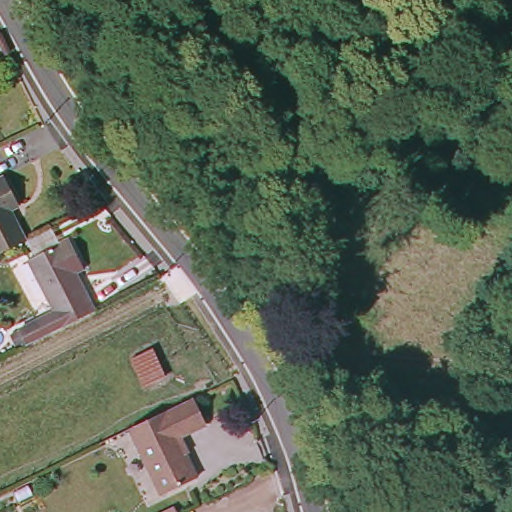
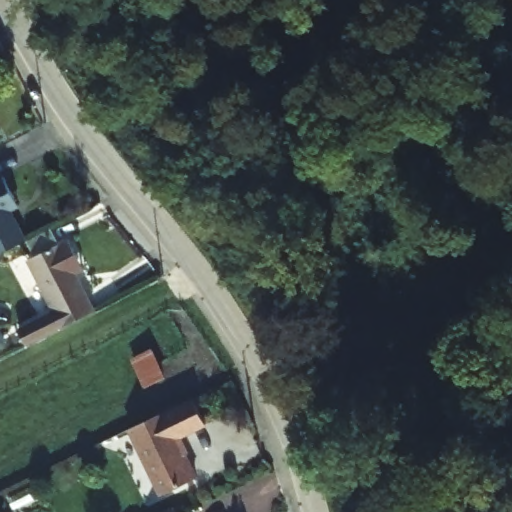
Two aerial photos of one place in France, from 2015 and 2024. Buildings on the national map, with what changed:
unchanged [(5,176),(17,199),(20,207),(11,212),(26,241),(3,252),(0,254),(0,178),(5,176)]
unchanged [(56,312),(30,260),(69,241),(79,260),(83,270),(75,273),(95,312),(67,326),(45,337),(37,321),(56,312)]
unchanged [(151,347),(165,377),(144,388),(129,357),(151,347)]
unchanged [(195,400),(207,426),(179,439),(198,480),(155,500),(124,433),(195,400)]

